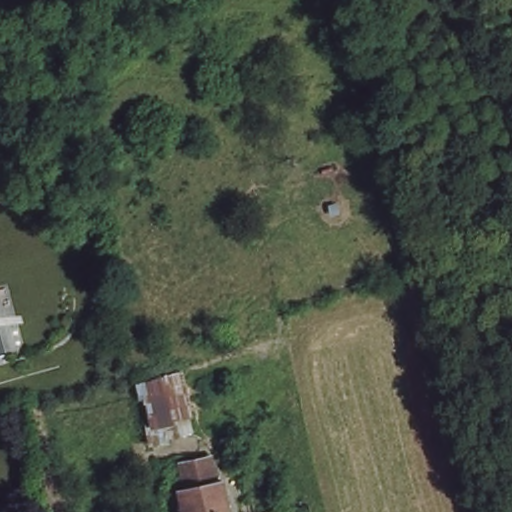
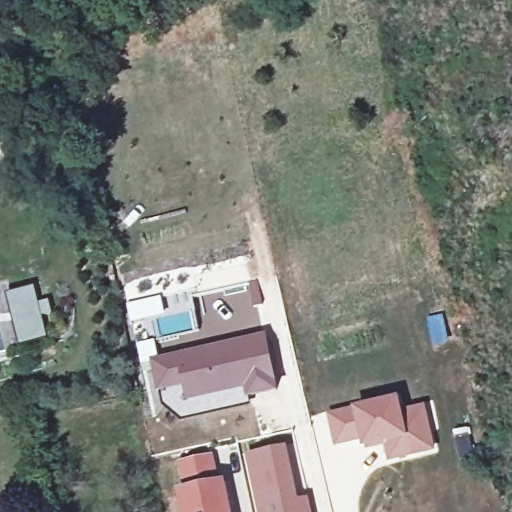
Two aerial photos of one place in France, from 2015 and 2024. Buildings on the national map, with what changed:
new [(12,325),(0,325),(0,284),(7,282),(15,317),(17,322),(12,325)]
new [(161,293),(166,315),(130,323),(125,302),(161,293)]
new [(155,338),(159,356),(267,331),(280,393),(249,401),(245,391),(186,403),(182,388),(154,395),(147,372),(142,373),(135,342),(155,338)]
new [(182,388),(186,403),(245,391),(249,401),(250,405),(180,420),(162,406),(160,403),(157,404),(154,395),(182,388)]
demolished [(159,425),(152,399),(174,394),(180,421),(159,425)]
new [(400,394),(403,407),(425,401),(437,451),(387,462),(382,446),(362,451),(360,442),(352,405),(400,394)]
new [(352,405),(360,442),(334,447),(325,412),(352,405)]
new [(469,426),(475,458),(459,462),(452,429),(469,426)]
new [(287,443),(300,497),(308,495),(312,512),(256,512),(243,453),(287,443)]
unchanged [(215,477),(220,476),(229,512),(184,512),(179,485),(185,483),(180,458),(184,457),(210,452),(212,466),(215,477)]

